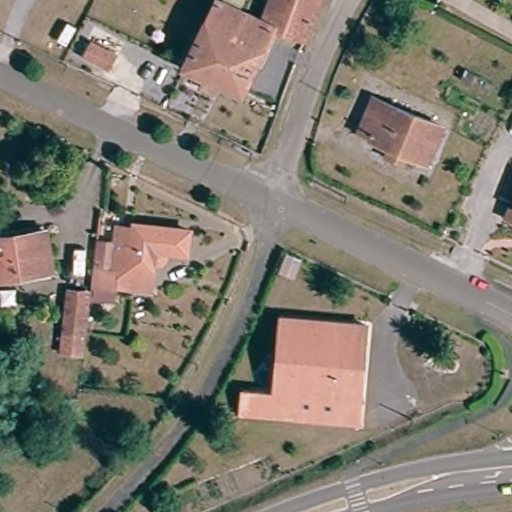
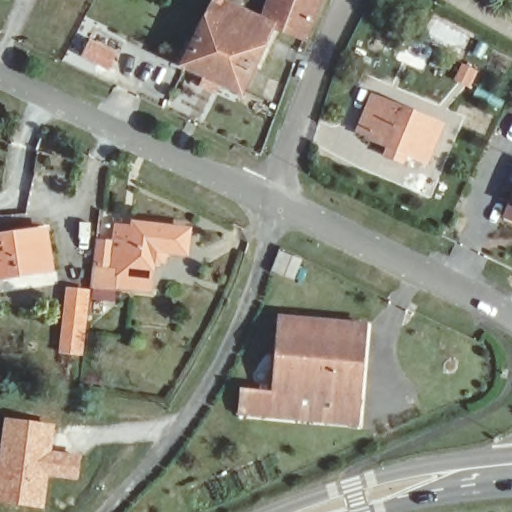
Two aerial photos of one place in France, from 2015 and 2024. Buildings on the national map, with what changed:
unchanged [(225,0),(240,0),(243,2),(237,15),(267,29),(268,24),(265,22),(273,0),(322,0),(306,44),(275,32),(245,97),(188,71),(219,6),(222,7),(225,0)]
unchanged [(112,55),(106,68),(86,59),(92,45),(112,55)]
unchanged [(387,151),(390,142),(370,135),(371,132),(358,127),(370,99),(372,92),(385,97),(442,121),(426,158),(406,150),(402,158),(387,151)]
unchanged [(512,204),(512,217),(507,215),(512,204)]
unchanged [(97,300),(98,297),(99,288),(99,285),(102,246),(102,241),(121,243),(123,227),(135,228),(136,225),(195,232),(192,254),(158,250),(155,269),(152,291),(119,287),(117,302),(97,300)]
unchanged [(52,271),(0,279),(0,237),(46,230),(52,271)]
unchanged [(87,353),(67,352),(74,291),(93,292),(87,353)]
unchanged [(319,422),(241,414),(244,391),(274,393),(282,317),(367,326),(361,402),(358,425),(319,422)]
new [(4,417),(56,425),(52,449),(82,454),(77,482),(50,477),(44,510),(0,503),(0,440),(4,417)]

